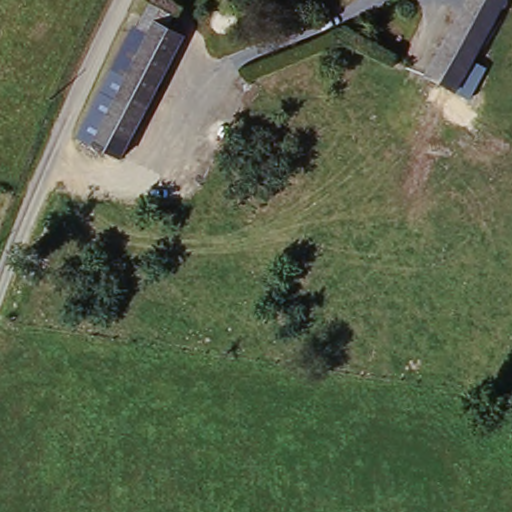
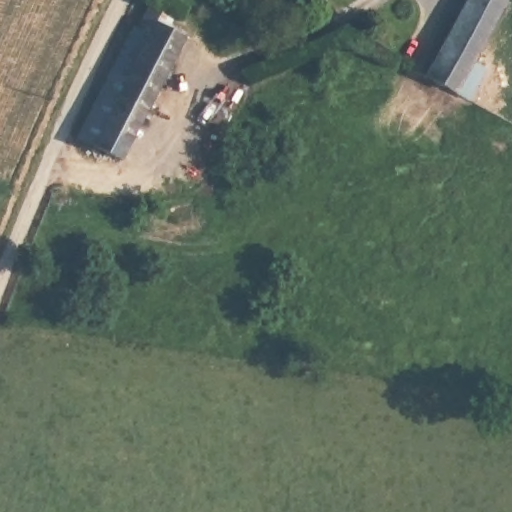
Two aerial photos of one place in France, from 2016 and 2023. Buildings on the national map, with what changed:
unchanged [(482,68),(466,99),(422,75),(464,0),(504,0),(470,61),(482,68)]
unchanged [(131,36),(135,38),(151,9),(174,18),(167,31),(185,39),(124,164),(79,142),(131,36)]

